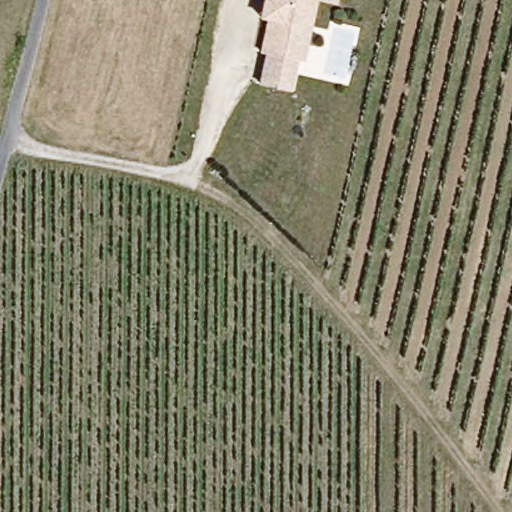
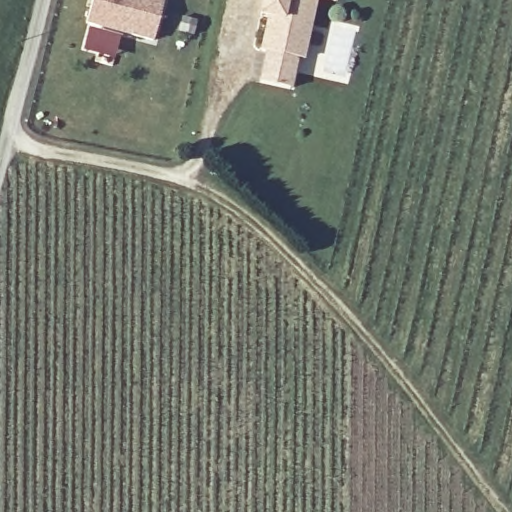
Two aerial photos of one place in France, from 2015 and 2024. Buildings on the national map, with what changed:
new [(86,24),(92,0),(165,0),(154,42),(86,24)]
unchanged [(292,89),(263,82),(270,50),(265,49),(272,15),(264,14),(268,1),(268,0),(320,0),(305,59),(299,56),(292,89)]

